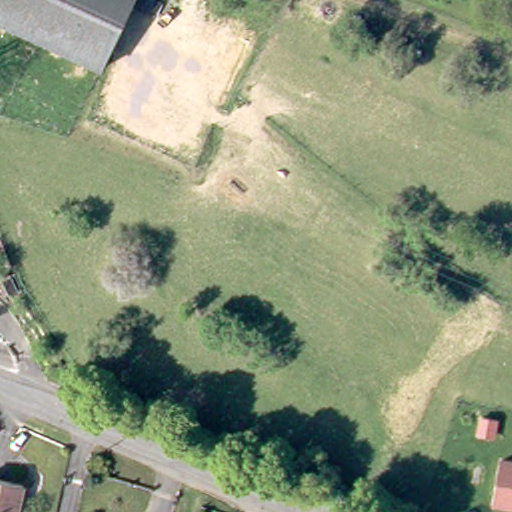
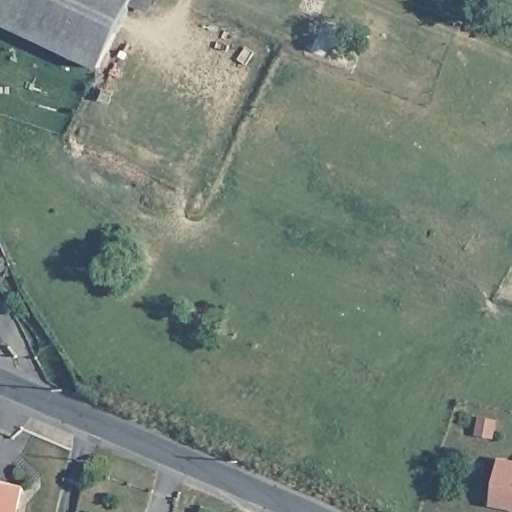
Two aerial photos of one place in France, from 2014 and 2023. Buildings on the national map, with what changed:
unchanged [(0,20),(0,0),(126,0),(95,64),(0,20)]
unchanged [(491,507),(502,457),(512,459),(512,511),(491,507)]
unchanged [(15,512),(0,512),(0,476),(22,481),(15,512)]

